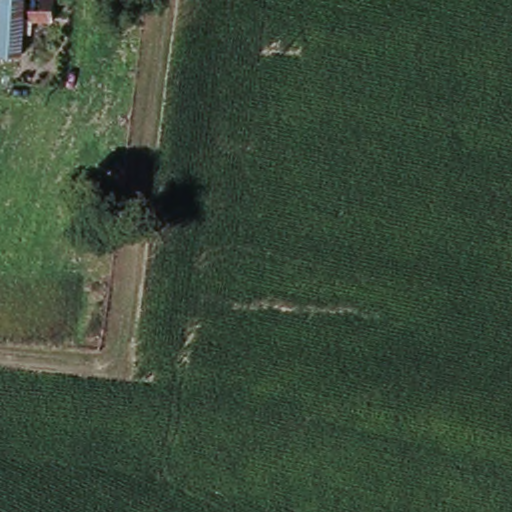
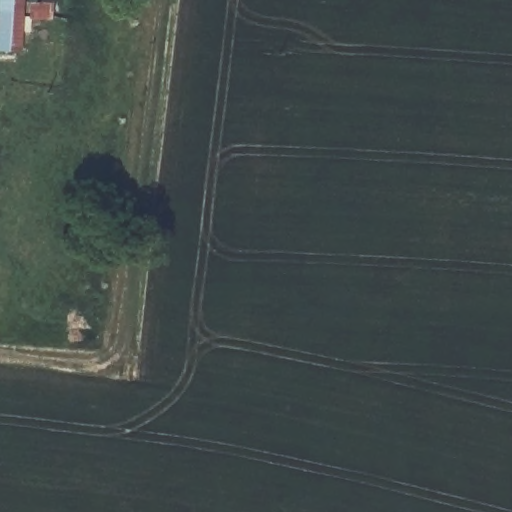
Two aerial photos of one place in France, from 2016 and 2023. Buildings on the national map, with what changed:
unchanged [(0,66),(0,0),(23,0),(20,68),(0,66)]
unchanged [(31,15),(32,0),(55,0),(54,17),(31,15)]

